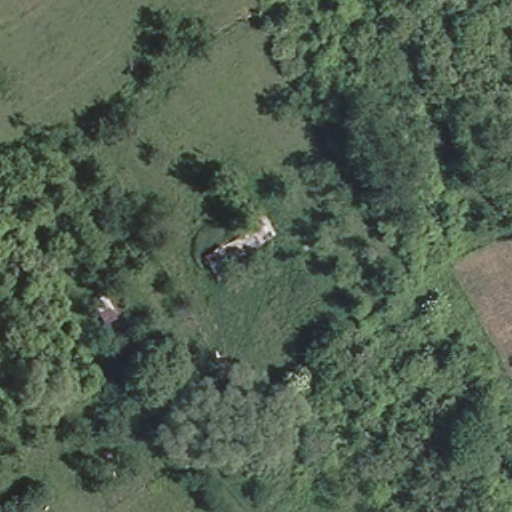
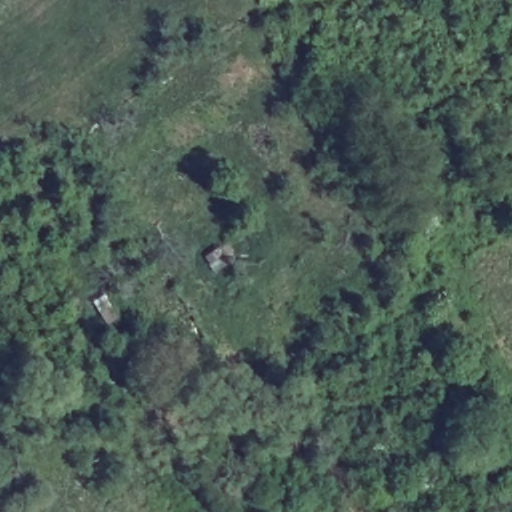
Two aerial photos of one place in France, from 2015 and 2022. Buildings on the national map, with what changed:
unchanged [(376,312),(322,342),(314,323),(351,299),(376,312)]

